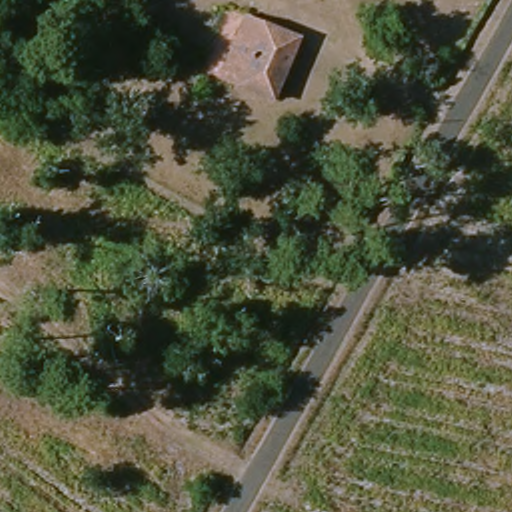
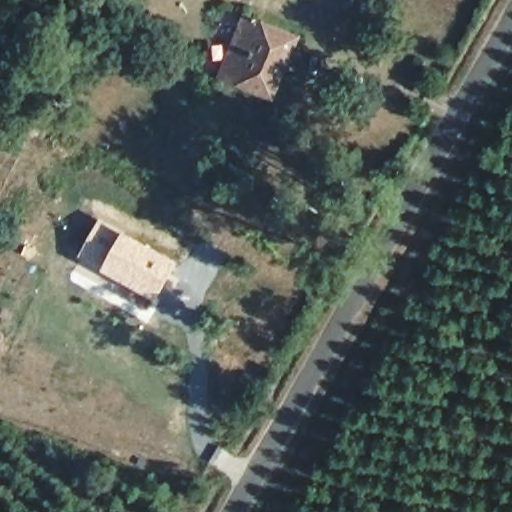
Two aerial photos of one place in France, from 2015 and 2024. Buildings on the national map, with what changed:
unchanged [(206,68),(235,11),(267,29),(240,84),(206,68)]
unchanged [(287,107),(240,84),(267,29),(315,50),(287,107)]
new [(79,257),(100,219),(125,232),(180,262),(158,302),(104,272),(79,257)]

